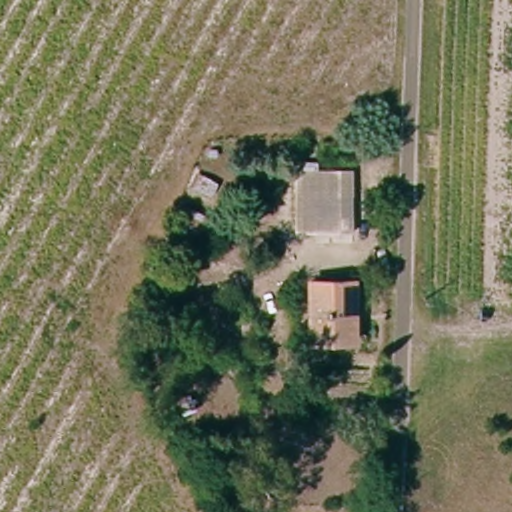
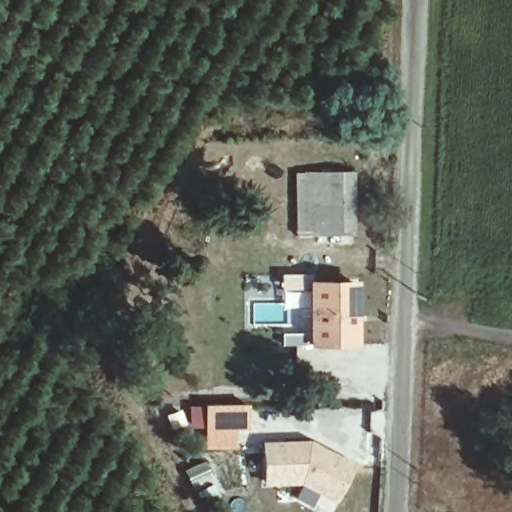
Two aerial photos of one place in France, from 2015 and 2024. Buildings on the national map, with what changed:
unchanged [(285,171),(358,172),(357,232),(288,231),(285,171)]
unchanged [(353,340),(312,340),(311,282),(355,282),(353,340)]
new [(181,408),(183,415),(187,413),(187,406),(247,403),(247,432),(240,432),(239,450),(204,450),(203,428),(189,428),(188,425),(170,430),(165,415),(181,408)]
new [(310,440),(298,486),(264,488),(261,441),(310,440)]
new [(298,486),(310,440),(354,462),(335,505),(318,496),(311,508),(295,498),(298,486)]

